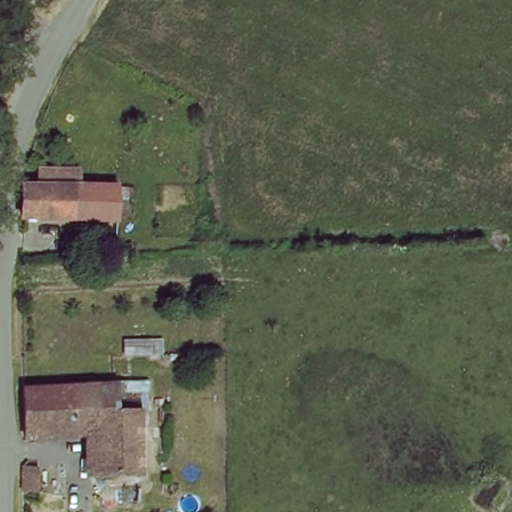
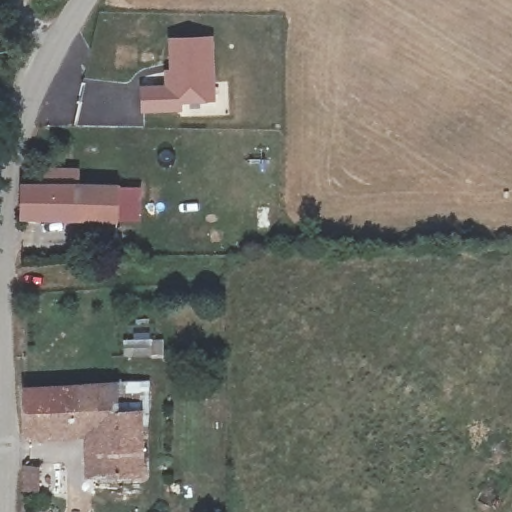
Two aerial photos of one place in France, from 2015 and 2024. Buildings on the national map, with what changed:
new [(162,94),(162,76),(167,76),(168,45),(212,45),(210,106),(178,106),(177,119),(137,120),(137,94),(162,94)]
unchanged [(118,206),(118,220),(24,220),(25,184),(35,184),(38,161),(77,164),(77,184),(118,182),(118,206)]
unchanged [(104,261),(103,244),(119,244),(120,260),(104,261)]
unchanged [(120,385),(122,405),(143,407),(142,474),(102,473),(102,431),(27,427),(26,412),(25,382),(120,385)]
unchanged [(38,478),(38,502),(23,503),(23,477),(38,478)]

